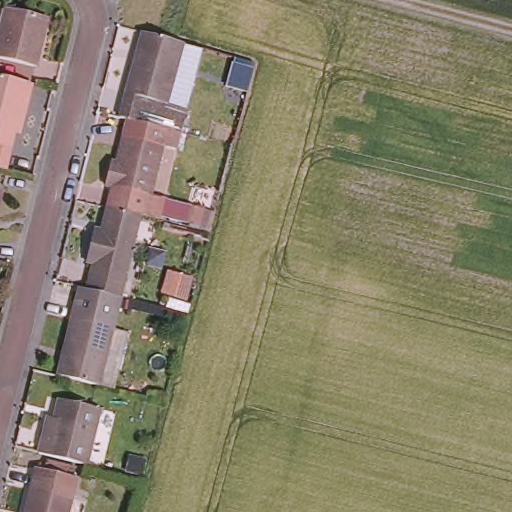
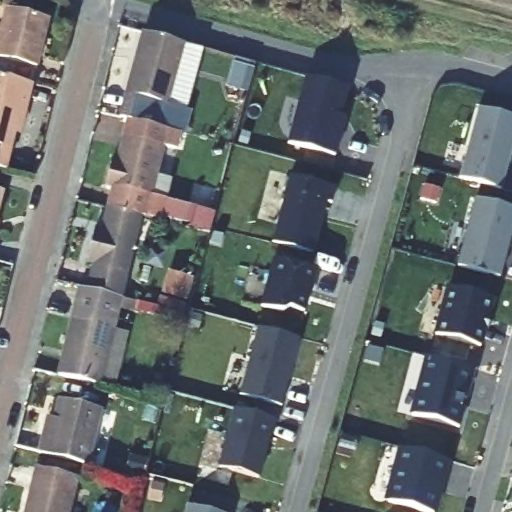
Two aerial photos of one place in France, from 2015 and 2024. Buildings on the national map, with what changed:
unchanged [(37,68),(0,58),(0,43),(9,9),(50,19),(37,68)]
unchanged [(126,120),(117,118),(138,35),(175,46),(199,52),(190,90),(170,85),(165,105),(185,110),(180,133),(126,120)]
unchanged [(0,66),(40,76),(32,109),(24,107),(10,162),(0,160),(0,66)]
new [(334,140),(339,141),(335,157),(289,144),(307,77),(347,88),(334,140)]
new [(477,109),(512,118),(512,146),(501,191),(459,180),(477,109)]
unchanged [(137,216),(105,207),(110,187),(102,185),(106,167),(112,167),(126,120),(180,133),(174,152),(159,149),(142,217),(137,216)]
new [(272,244),(289,177),(335,189),(331,205),(326,203),(312,255),(272,244)]
unchanged [(0,220),(0,192),(7,194),(0,220)]
new [(457,267),(475,199),(512,209),(512,227),(499,278),(457,267)]
unchanged [(137,216),(117,298),(85,291),(91,264),(84,262),(91,230),(99,232),(105,207),(137,216)]
new [(261,307),(273,260),(318,272),(314,288),(310,287),(303,313),(289,310),(282,313),(261,307)]
unchanged [(194,285),(188,312),(166,307),(172,280),(194,285)]
unchanged [(97,387),(57,377),(77,288),(85,291),(117,298),(119,299),(97,387)]
new [(479,328),(484,330),(479,347),(435,336),(447,288),(487,299),(479,328)]
new [(279,406),(237,395),(255,327),(296,338),(279,406)]
new [(462,427),(420,416),(435,357),(476,367),(462,427)]
unchanged [(50,427),(58,428),(65,402),(103,412),(91,467),(44,455),(50,427)]
new [(268,437),(267,436),(256,477),(217,467),(232,410),(272,420),(268,437)]
new [(440,512),(392,501),(404,448),(452,460),(440,512)]
unchanged [(40,472),(82,482),(75,512),(30,512),(40,472)]
new [(188,506),(212,512),(186,512),(188,506)]

